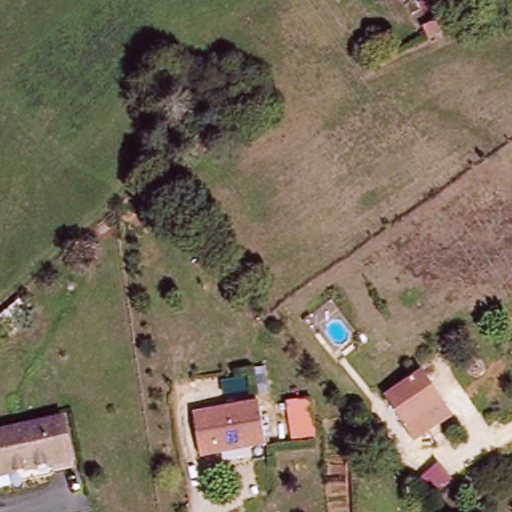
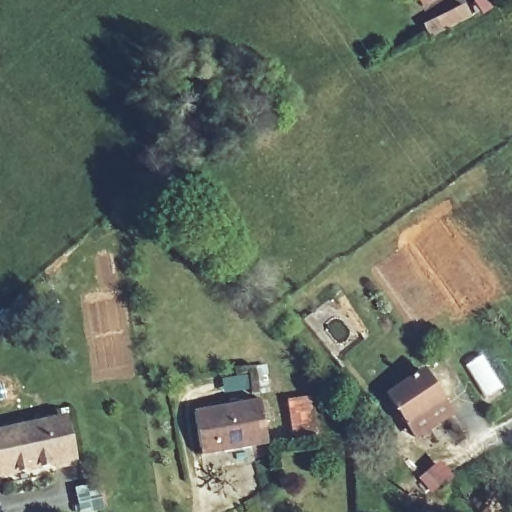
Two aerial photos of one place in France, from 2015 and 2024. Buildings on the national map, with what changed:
unchanged [(445,32),(416,48),(407,32),(437,17),(445,32)]
unchanged [(0,325),(0,304),(11,295),(23,310),(2,327),(0,325)]
unchanged [(387,394),(423,368),(452,410),(416,436),(387,394)]
unchanged [(287,402),(307,399),(311,434),(292,436),(287,402)]
unchanged [(201,457),(195,412),(262,404),(267,449),(201,457)]
unchanged [(72,466),(32,474),(0,482),(0,438),(64,425),(72,466)]

